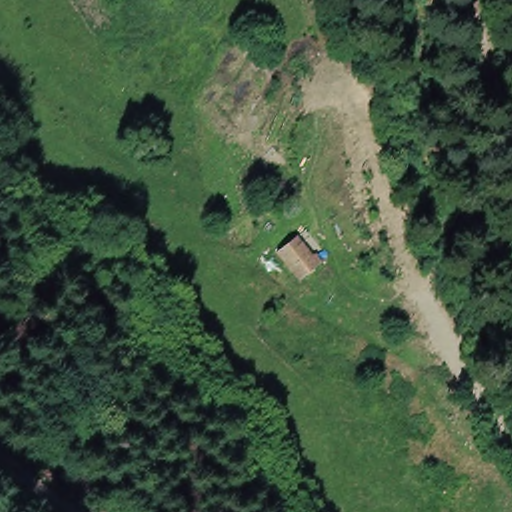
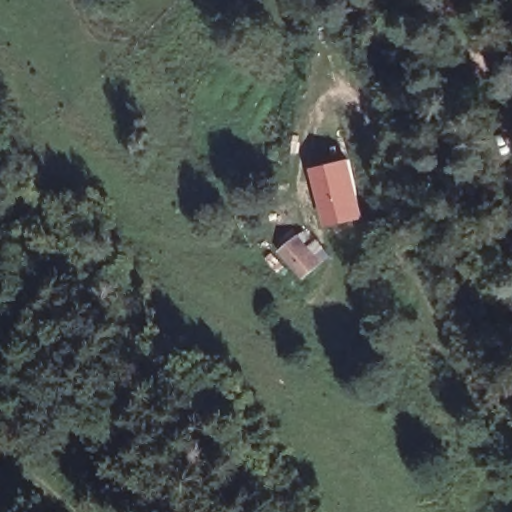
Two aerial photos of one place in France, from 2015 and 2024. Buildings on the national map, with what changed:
demolished [(352,151),(364,192),(335,201),(322,160),(352,151)]
new [(349,158),(364,218),(325,227),(310,167),(349,158)]
unchanged [(338,275),(320,289),(298,262),(316,247),(338,275)]

